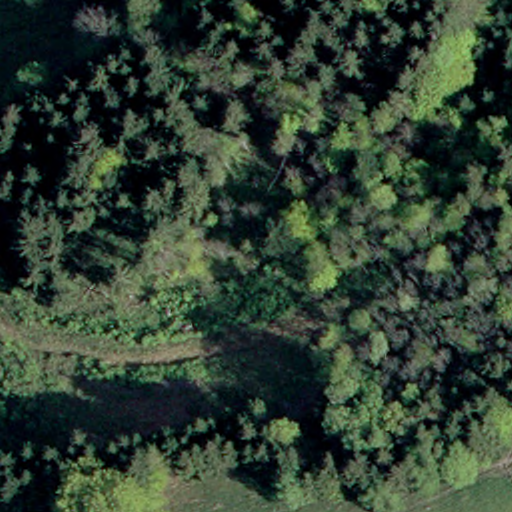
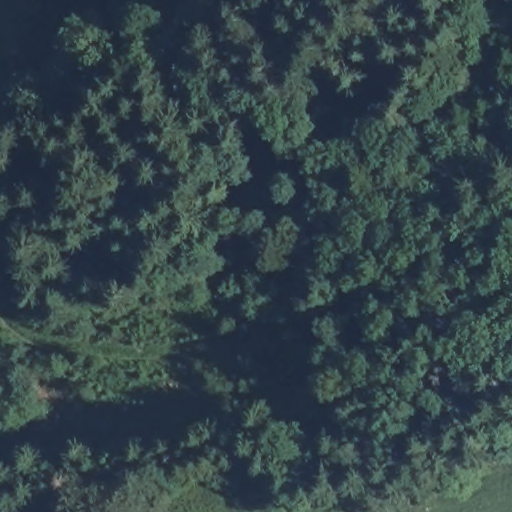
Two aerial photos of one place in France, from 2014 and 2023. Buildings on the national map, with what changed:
[]

